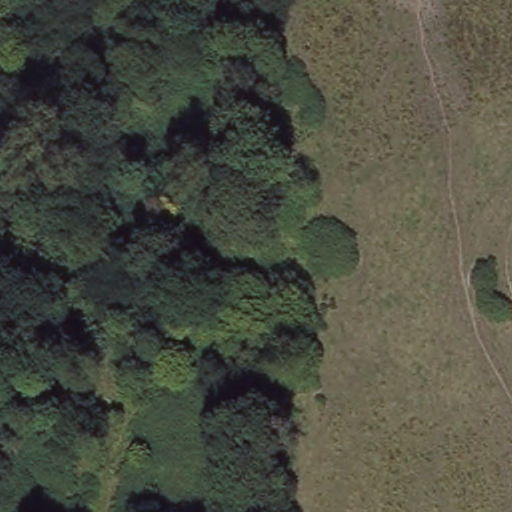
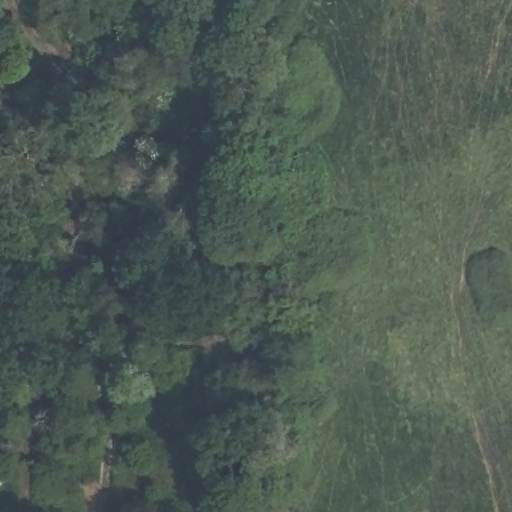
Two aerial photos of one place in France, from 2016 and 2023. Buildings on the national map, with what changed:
unchanged [(54,321),(55,346),(37,346),(35,323),(54,321)]

